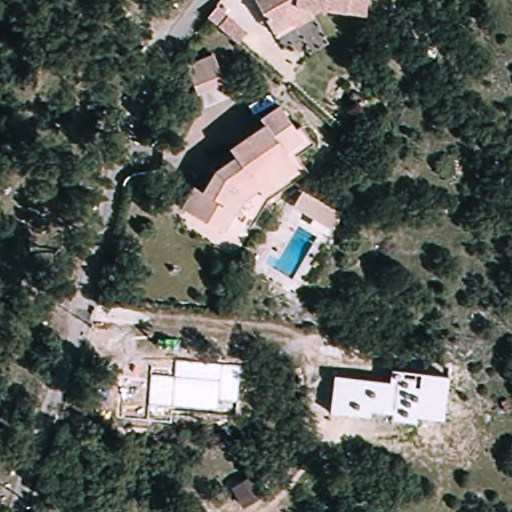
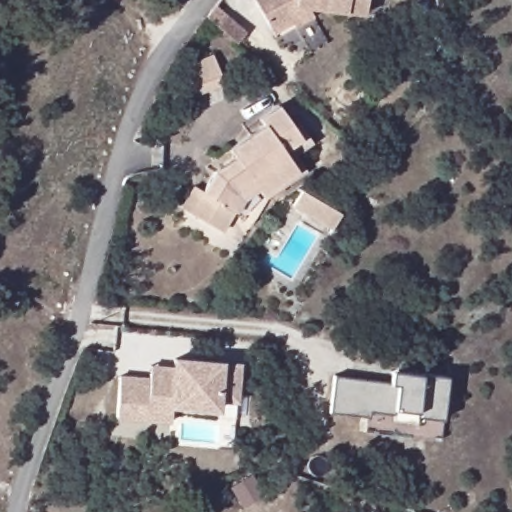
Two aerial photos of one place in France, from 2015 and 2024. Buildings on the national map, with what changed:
unchanged [(303,16),(266,36),(245,1),(247,0),(362,0),(359,23),(303,16)]
new [(237,43),(218,26),(206,16),(214,5),(226,16),(246,33),(237,43)]
unchanged [(207,60),(218,88),(191,98),(179,71),(207,60)]
unchanged [(189,177),(198,182),(211,161),(230,148),(223,139),(258,115),(254,109),(273,96),(289,119),(294,115),(308,133),(291,145),(284,150),(291,160),(256,185),(250,177),(236,188),(216,221),(184,203),(176,198),(189,177)]
unchanged [(306,196),(345,218),(336,234),(298,211),(306,196)]
new [(237,403),(219,401),(218,411),(171,408),(169,422),(117,419),(121,375),(151,376),(151,364),(171,364),(171,357),(223,362),(241,363),(237,403)]
unchanged [(448,377),(444,420),(417,418),(418,424),(393,421),(393,414),(371,411),(371,418),(331,412),(334,375),(390,382),(391,370),(448,377)]
unchanged [(262,497),(243,508),(230,487),(248,478),(262,497)]

